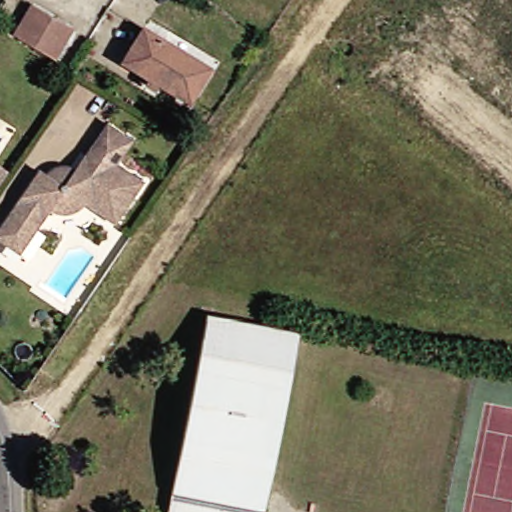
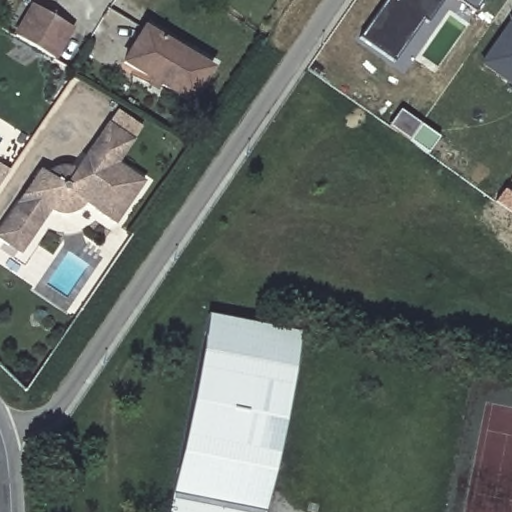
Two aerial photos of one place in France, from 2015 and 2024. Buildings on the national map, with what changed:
new [(478,12),(471,22),(445,3),(431,22),(427,19),(396,61),(362,36),(388,0),(487,0),(478,12)]
unchanged [(10,36),(27,7),(67,31),(50,60),(10,36)]
new [(512,26),(512,80),(487,63),(512,26)]
unchanged [(138,86),(141,81),(113,64),(134,30),(201,70),(181,104),(148,85),(145,90),(138,86)]
unchanged [(62,214),(52,215),(48,214),(41,211),(11,255),(0,248),(0,216),(30,172),(42,180),(47,176),(52,174),(58,175),(62,177),(99,125),(123,142),(107,165),(134,183),(106,225),(76,204),(70,210),(62,214)]
unchanged [(2,173),(0,175),(0,172),(2,173)]
unchanged [(290,334),(255,512),(159,512),(197,316),(290,334)]

